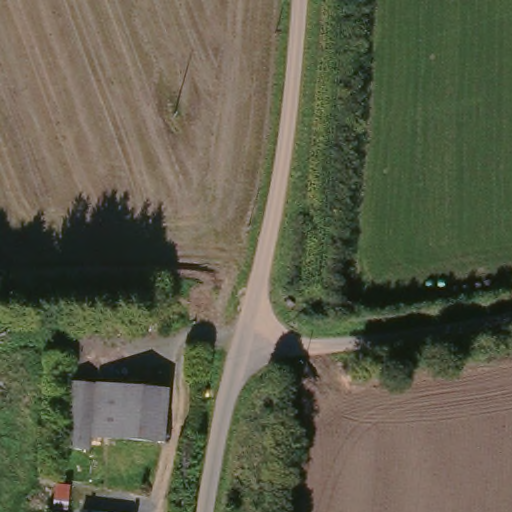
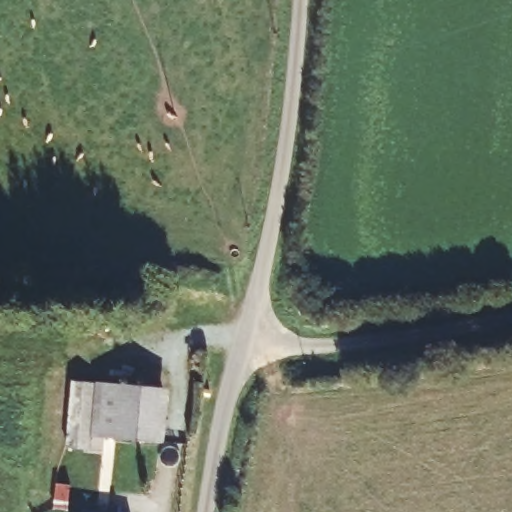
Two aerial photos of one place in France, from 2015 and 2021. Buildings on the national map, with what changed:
unchanged [(64,451),(66,389),(86,390),(84,438),(83,452),(64,451)]
unchanged [(84,438),(86,390),(115,391),(113,439),(84,438)]
unchanged [(113,439),(115,391),(166,392),(162,440),(113,439)]

